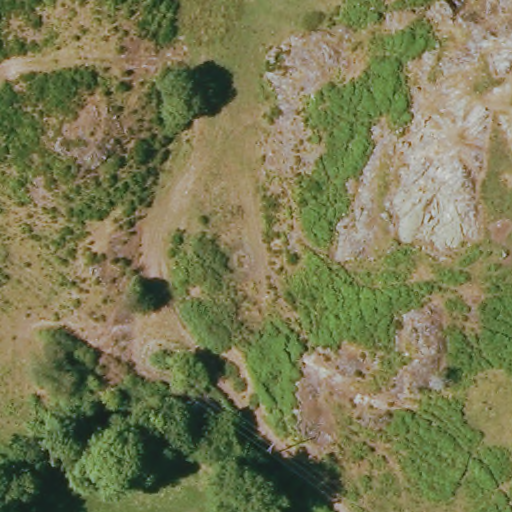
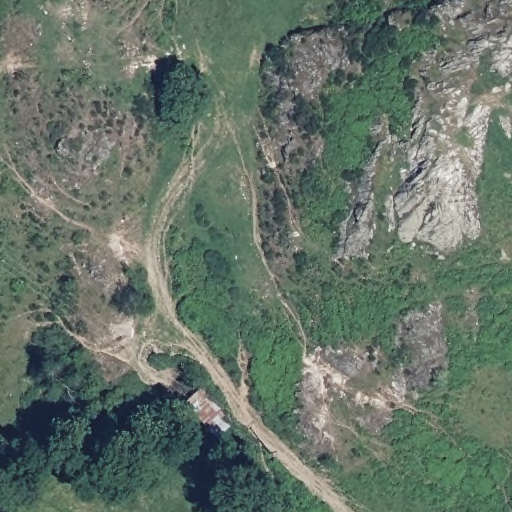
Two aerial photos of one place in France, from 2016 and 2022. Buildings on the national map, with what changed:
unchanged [(209,388),(240,428),(220,442),(188,407),(209,388)]

